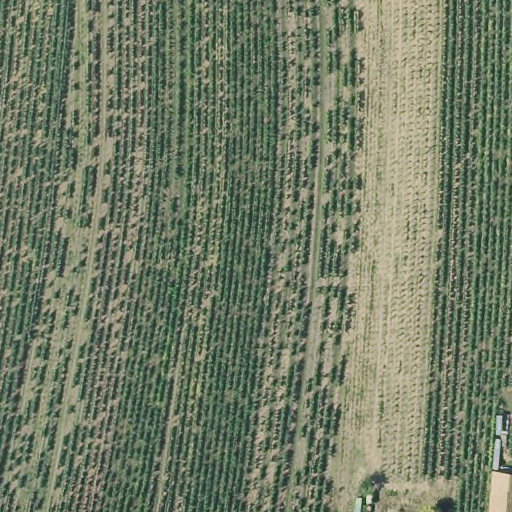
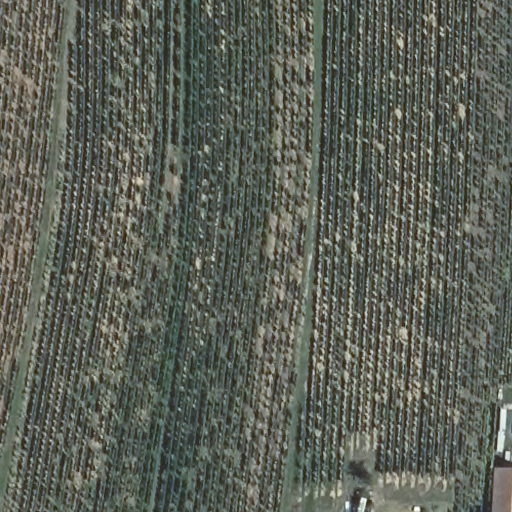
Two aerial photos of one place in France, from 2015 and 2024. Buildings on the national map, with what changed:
unchanged [(512,470),(512,512),(488,512),(491,469),(512,470)]

